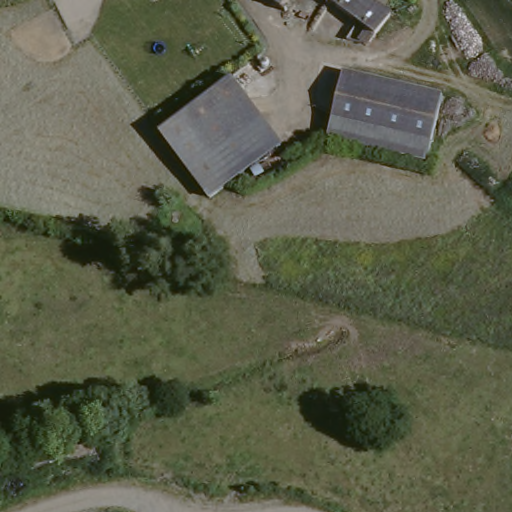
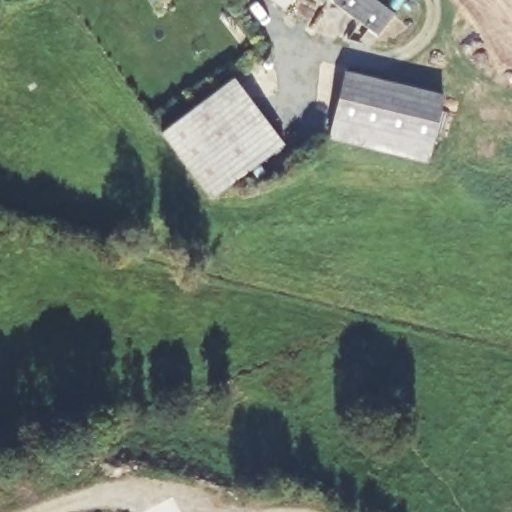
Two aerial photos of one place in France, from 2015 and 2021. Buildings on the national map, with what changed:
unchanged [(393,23),(370,55),(362,48),(371,37),(332,8),(311,36),(262,0),(363,0),(393,23)]
unchanged [(330,139),(347,75),(443,102),(426,165),(330,139)]
unchanged [(233,83),(235,82),(283,147),(209,201),(162,134),(179,123),(233,83)]

